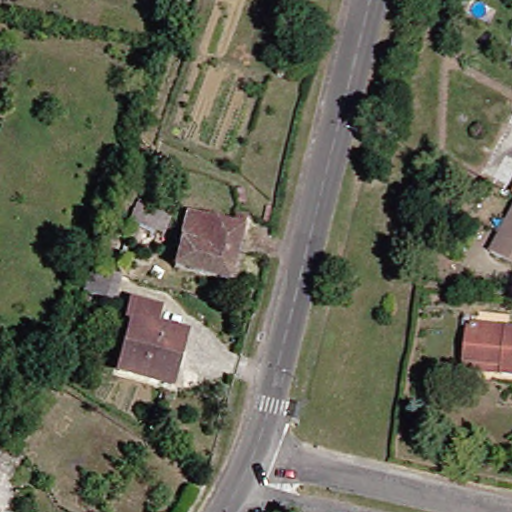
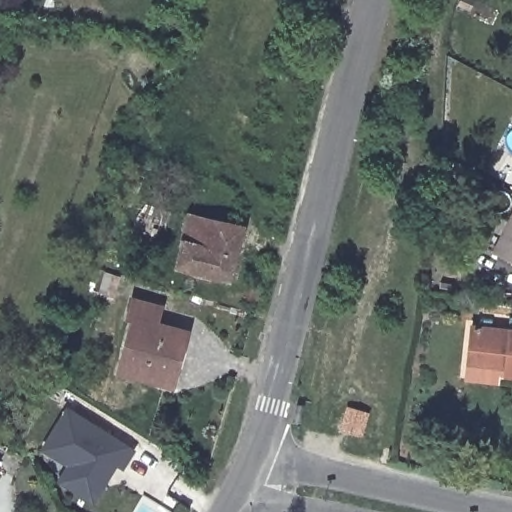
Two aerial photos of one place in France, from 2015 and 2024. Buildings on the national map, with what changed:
unchanged [(506,196),(512,185),(512,199),(506,196)]
unchanged [(484,255),(512,200),(512,270),(484,255)]
unchanged [(141,210),(158,214),(154,229),(131,223),(141,210)]
unchanged [(240,225),(226,286),(170,274),(183,220),(232,232),(234,224),(240,225)]
unchanged [(89,274),(115,282),(110,304),(80,296),(89,274)]
unchanged [(130,304),(156,312),(152,329),(184,338),(169,392),(114,377),(128,324),(125,322),(130,304)]
unchanged [(462,362),(466,324),(512,328),(512,377),(498,376),(461,372),(462,362)]
new [(93,504),(56,481),(66,466),(39,449),(66,406),(136,451),(124,471),(116,468),(93,504)]

